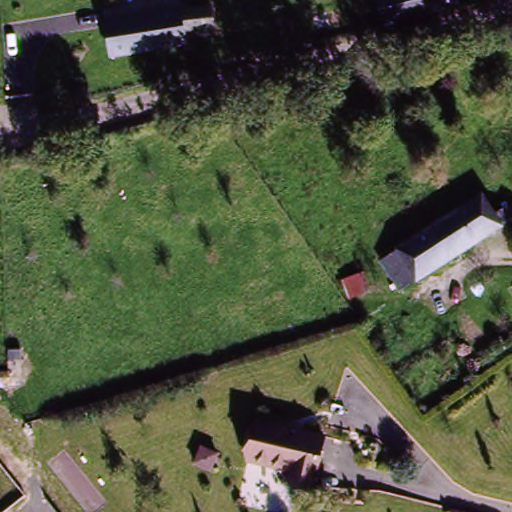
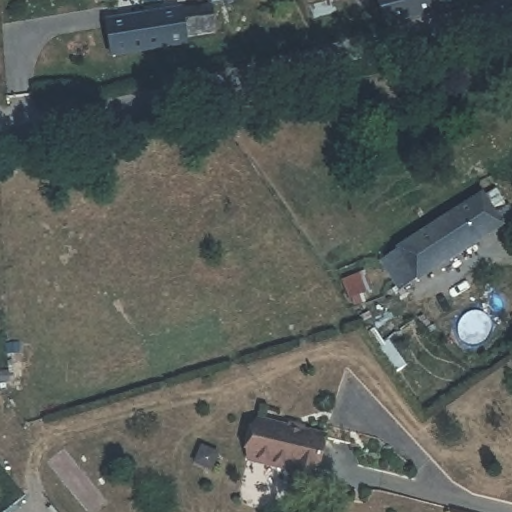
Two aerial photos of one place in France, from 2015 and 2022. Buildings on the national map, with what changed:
unchanged [(106,17),(219,0),(235,0),(240,27),(186,36),(188,43),(112,55),(106,17)]
unchanged [(462,0),(463,2),(396,19),(391,0),(462,0)]
unchanged [(507,202),(512,209),(512,215),(404,294),(380,263),(474,192),(492,212),(507,202)]
unchanged [(320,432),(310,476),(297,472),(288,470),(288,467),(245,457),(250,431),(254,417),(320,432)]

